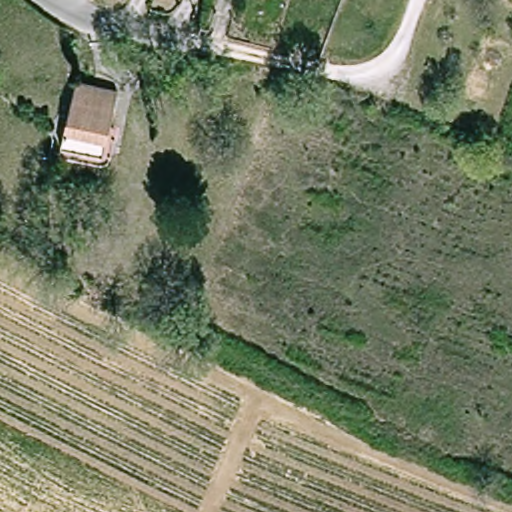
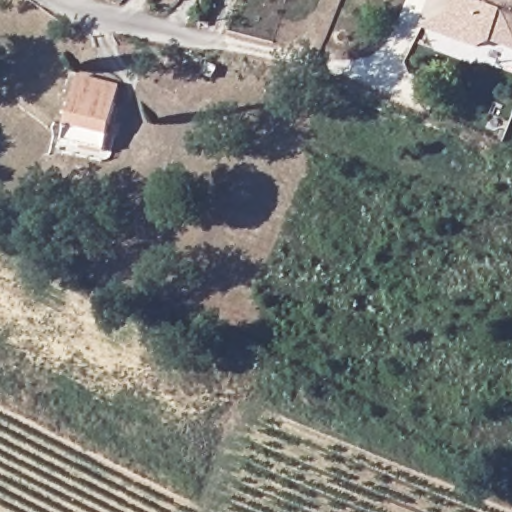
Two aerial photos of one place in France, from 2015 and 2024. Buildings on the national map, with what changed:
new [(491,44),(472,50),(422,29),(447,16),(453,0),(512,0),(512,51),(491,44)]
unchanged [(120,92),(97,156),(63,145),(84,80),(120,92)]

